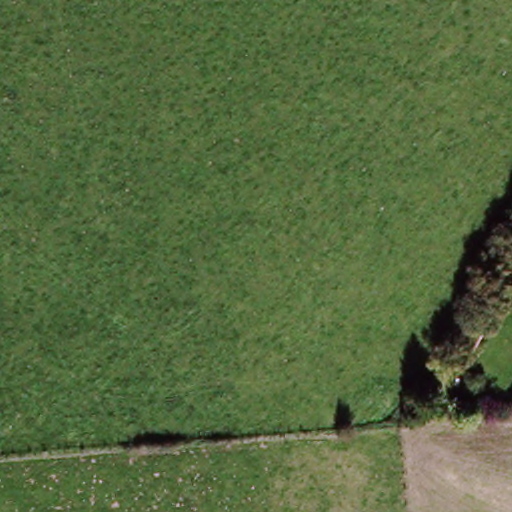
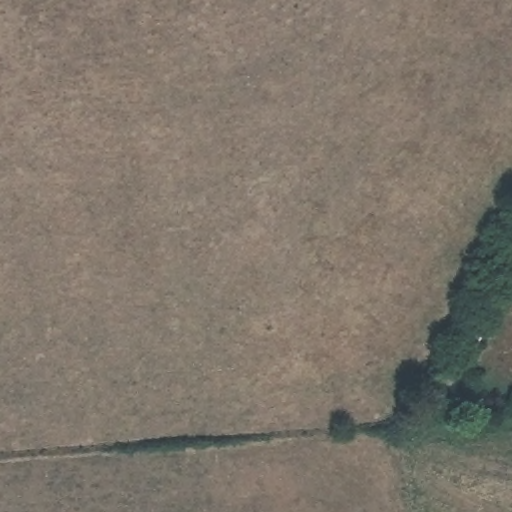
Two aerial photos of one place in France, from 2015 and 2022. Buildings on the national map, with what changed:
[]

